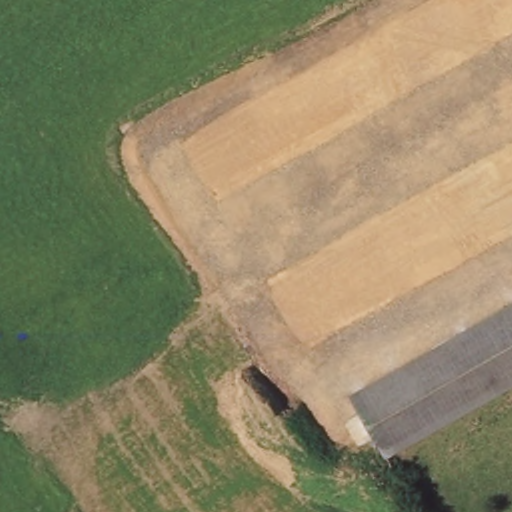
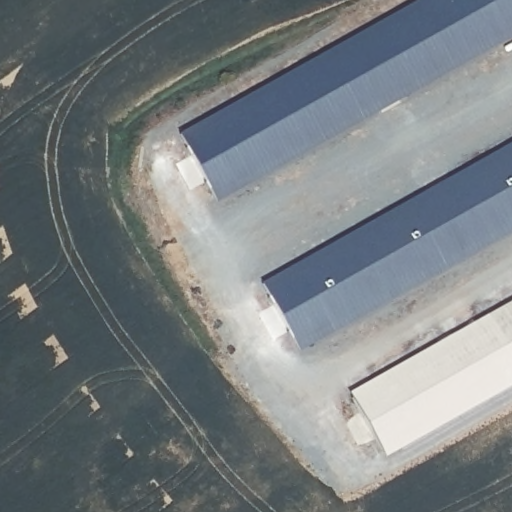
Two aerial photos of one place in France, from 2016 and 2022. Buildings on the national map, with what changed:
new [(512,0),(512,40),(219,206),(180,136),(419,0),(512,0)]
new [(264,285),(512,143),(512,234),(303,352),(264,285)]
unchanged [(512,305),(512,376),(376,448),(347,393),(512,305)]

